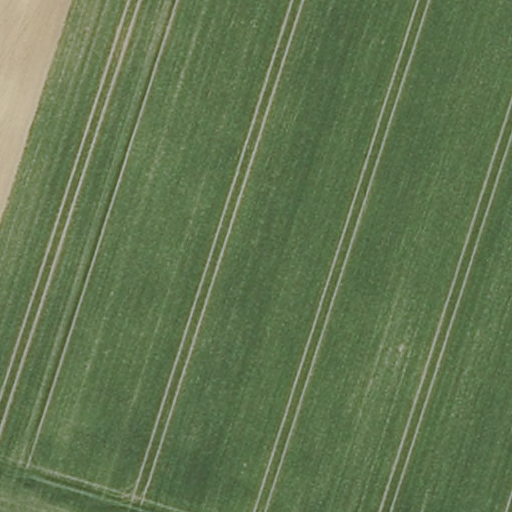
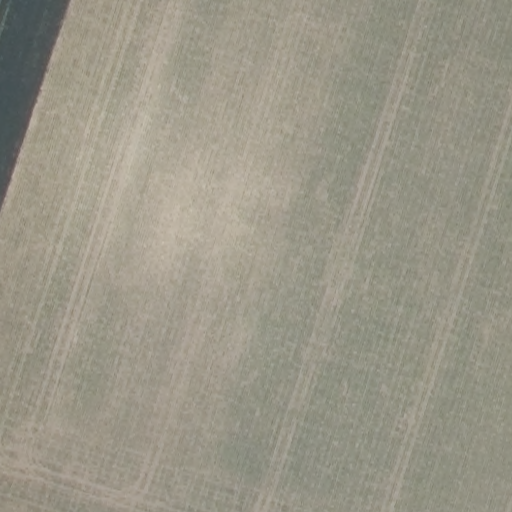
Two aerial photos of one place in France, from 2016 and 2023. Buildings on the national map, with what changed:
[]

